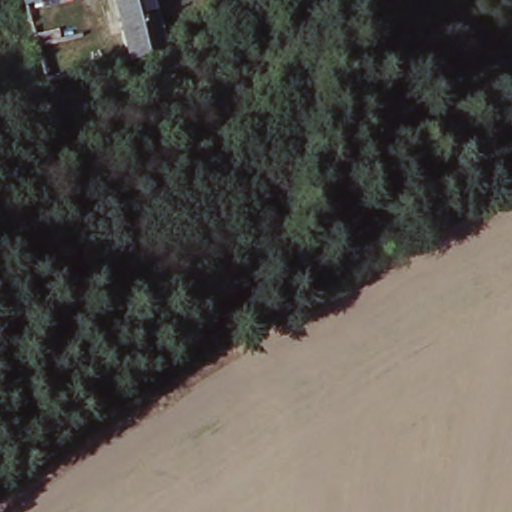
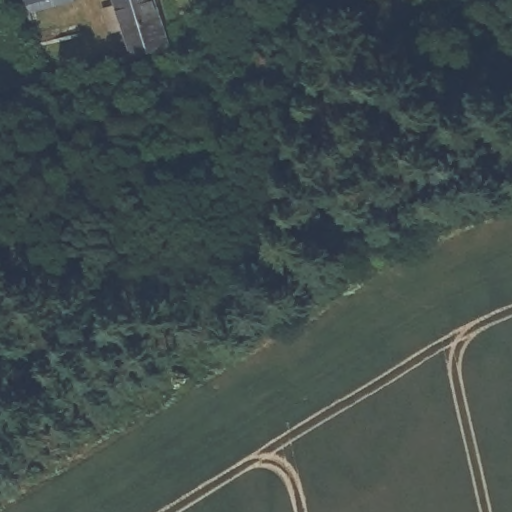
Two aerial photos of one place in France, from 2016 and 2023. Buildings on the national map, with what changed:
unchanged [(29,0),(51,0),(30,5),(29,0)]
unchanged [(158,0),(169,43),(171,50),(136,60),(135,56),(120,0),(158,0)]

